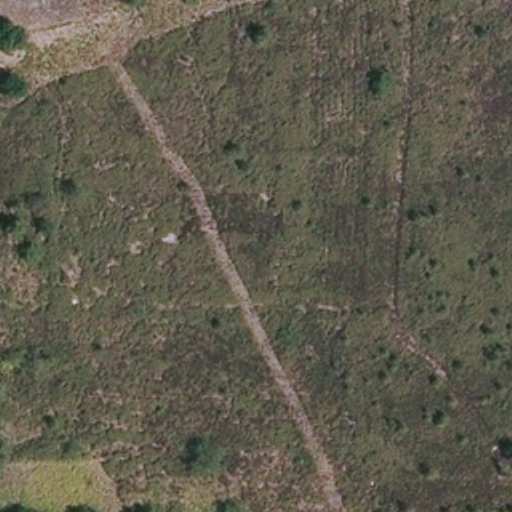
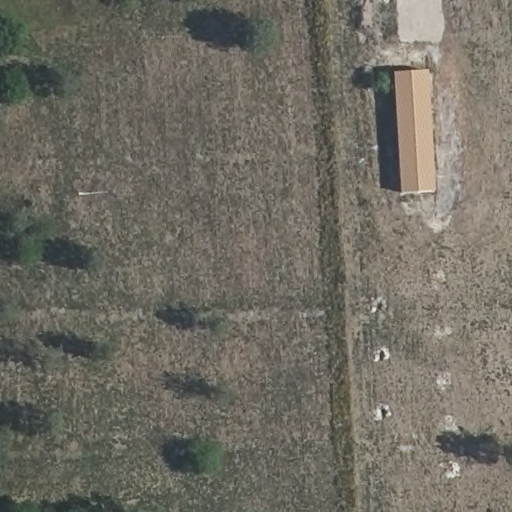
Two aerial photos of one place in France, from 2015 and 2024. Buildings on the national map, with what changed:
new [(436,191),(402,194),(395,73),(429,70),(436,191)]

